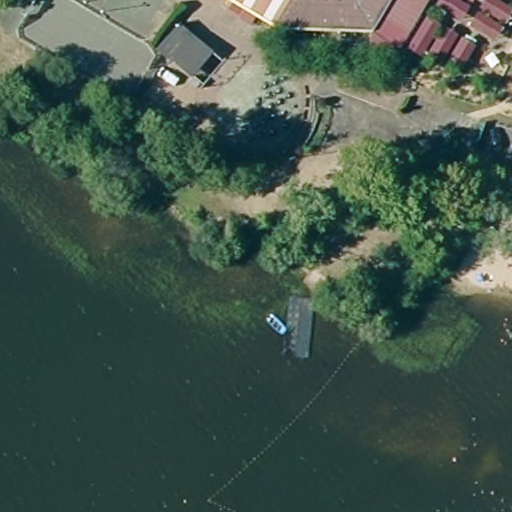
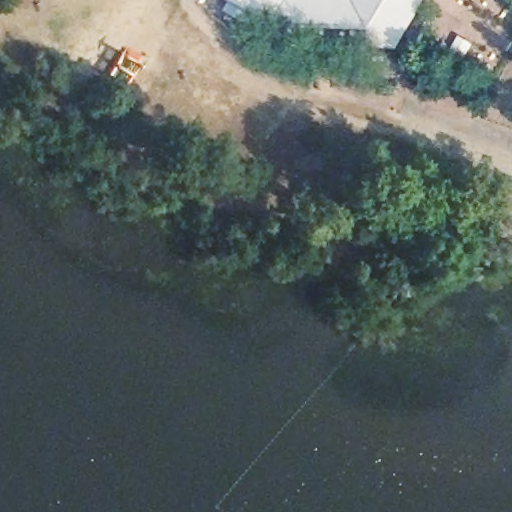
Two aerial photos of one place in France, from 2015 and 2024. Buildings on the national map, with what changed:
unchanged [(277,21),(256,10),(251,19),(230,7),(234,0),(290,0),(278,19),(277,21)]
unchanged [(366,51),(369,37),(277,21),(278,19),(290,0),(428,0),(396,57),(366,51)]
demolished [(181,22),(216,51),(193,79),(159,49),(181,22)]

